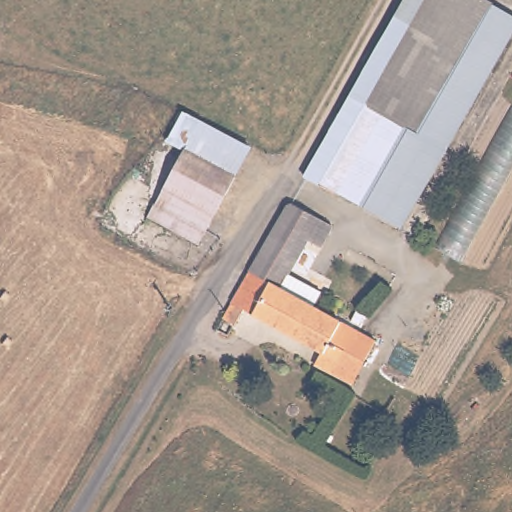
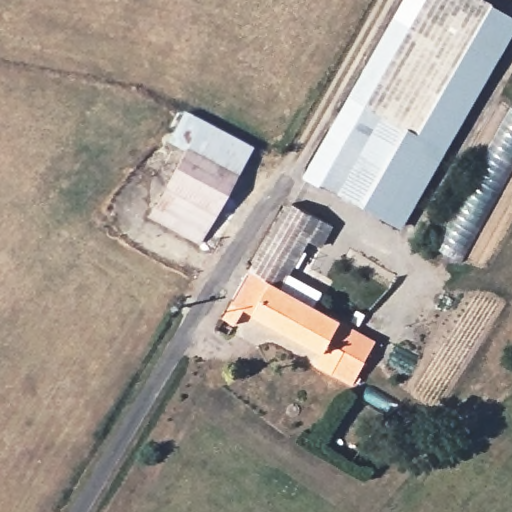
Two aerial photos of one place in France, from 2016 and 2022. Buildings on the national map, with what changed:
unchanged [(489,0),(512,13),(512,24),(395,229),(333,194),(378,113),(349,95),(404,0),(489,0)]
unchanged [(302,177),(349,95),(378,113),(333,194),(307,179),(302,177)]
unchanged [(150,210),(186,144),(235,174),(199,239),(150,210)]
unchanged [(222,312),(293,200),(333,223),(322,241),(310,233),(290,269),(321,288),(313,302),(376,338),(351,383),(313,361),(319,350),(244,306),(235,320),(222,312)]

